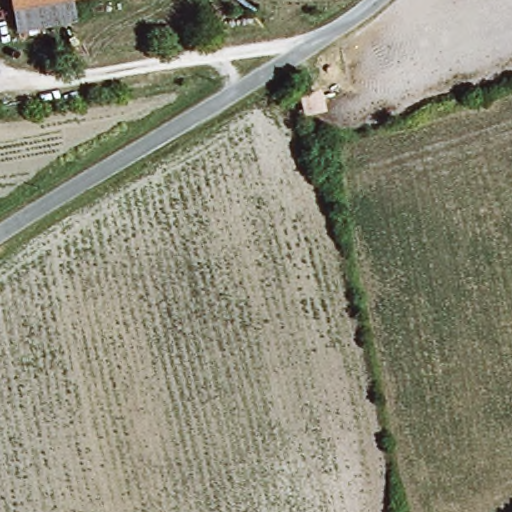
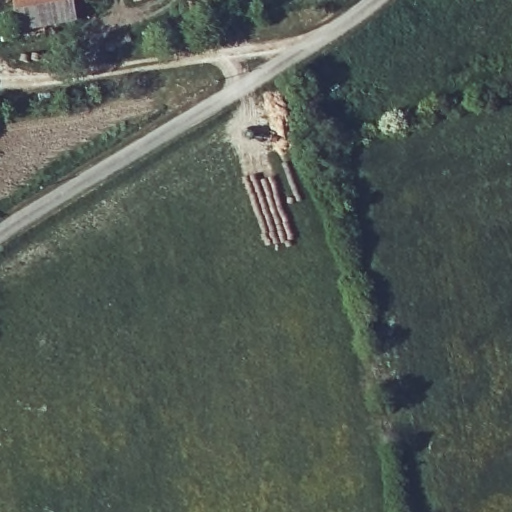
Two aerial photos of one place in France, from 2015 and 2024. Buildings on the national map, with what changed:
unchanged [(21,26),(17,0),(71,0),(73,19),(21,26)]

